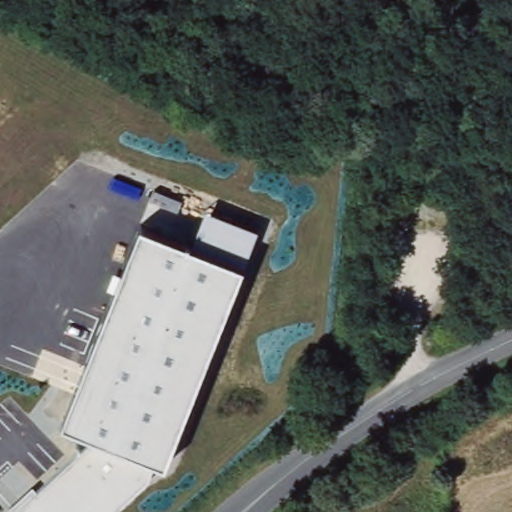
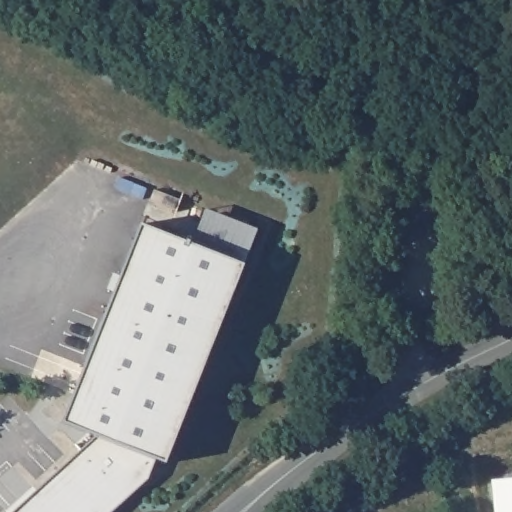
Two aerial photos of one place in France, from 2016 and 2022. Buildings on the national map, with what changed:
unchanged [(243,266),(166,462),(153,456),(146,482),(113,512),(16,512),(99,436),(62,422),(140,225),(189,244),(205,210),(258,230),(243,266)]
new [(512,478),(512,512),(495,512),(491,480),(512,478)]

